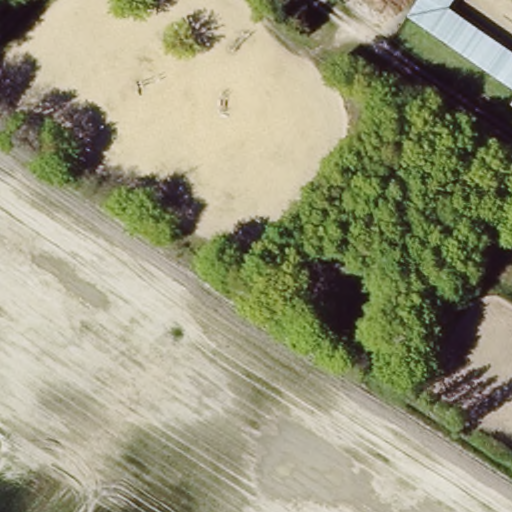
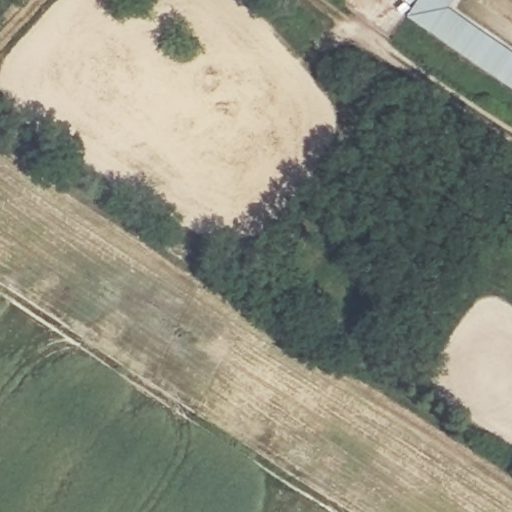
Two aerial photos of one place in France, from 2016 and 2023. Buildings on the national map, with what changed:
unchanged [(416,0),(452,0),(447,8),(512,53),(512,89),(405,15),(416,0)]

